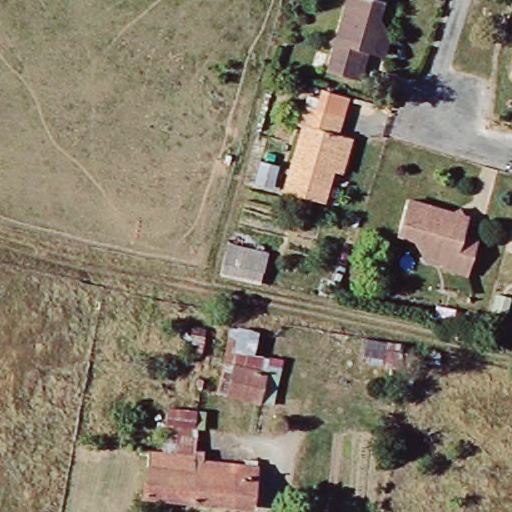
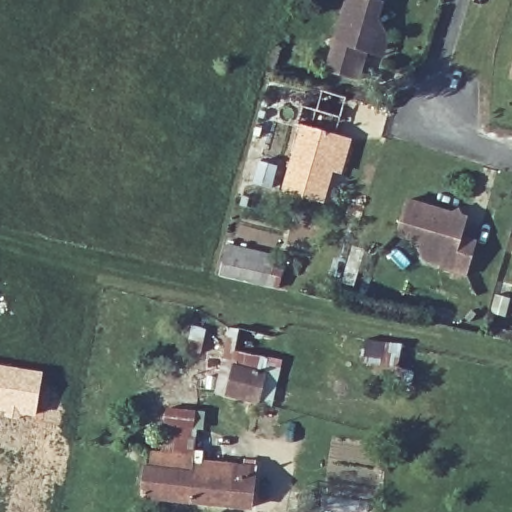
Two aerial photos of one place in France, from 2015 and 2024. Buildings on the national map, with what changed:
unchanged [(376,54),(365,51),(356,49),(347,77),(320,70),(327,49),(322,39),(330,35),(341,0),(377,0),(372,19),(376,20),(378,27),(381,36),(376,54)]
unchanged [(512,70),(512,80),(509,79),(512,70)]
unchanged [(345,175),(336,172),(328,204),(291,194),(309,129),(303,127),(308,107),(321,111),(326,93),(351,100),(340,137),(345,138),(354,141),(345,175)]
unchanged [(392,235),(402,199),(445,211),(453,207),(456,214),(462,216),(455,244),(470,247),(463,273),(436,266),(440,254),(422,250),(415,254),(408,244),(409,240),(392,235)]
unchanged [(268,252),(260,285),(219,276),(228,243),(268,252)]
unchanged [(213,392),(228,326),(268,335),(261,367),(271,370),(266,403),(255,402),(213,392)]
unchanged [(387,369),(372,364),(377,341),(416,349),(407,386),(387,382),(387,369)]
new [(43,372),(35,418),(0,411),(0,365),(43,372)]
unchanged [(146,453),(156,453),(162,407),(195,410),(191,453),(189,471),(144,466),(146,453)]
unchanged [(203,455),(202,462),(235,466),(235,476),(249,477),(248,506),(187,500),(189,471),(191,453),(203,455)]
unchanged [(187,500),(141,495),(144,466),(189,471),(187,500)]

